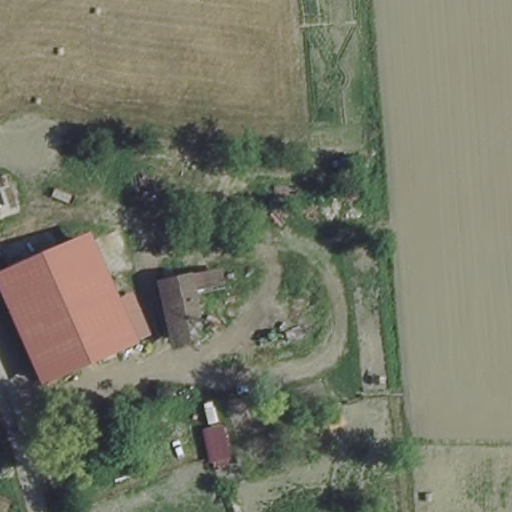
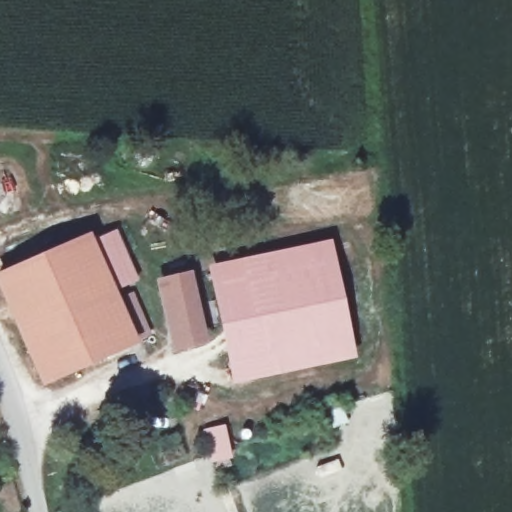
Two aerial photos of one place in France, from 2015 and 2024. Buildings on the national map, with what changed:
unchanged [(113,231),(125,267),(103,276),(120,318),(132,314),(140,339),(40,380),(0,290),(0,275),(60,251),(113,231)]
new [(330,243),(352,360),(230,384),(208,267),(330,243)]
unchanged [(175,344),(165,287),(185,284),(191,315),(196,339),(175,344)]

